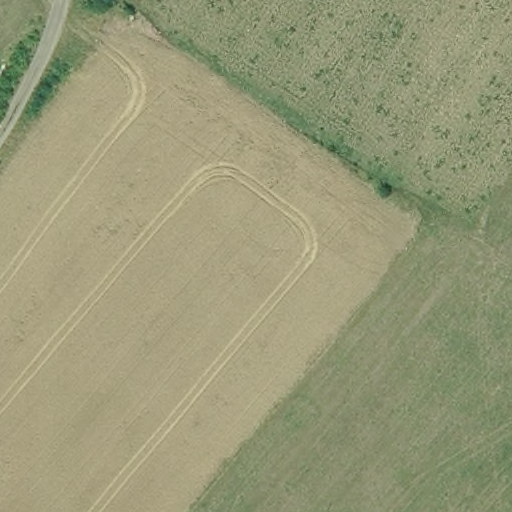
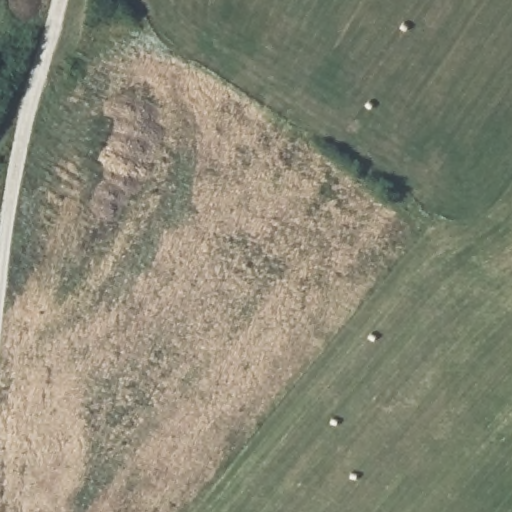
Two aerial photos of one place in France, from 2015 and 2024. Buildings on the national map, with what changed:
[]

